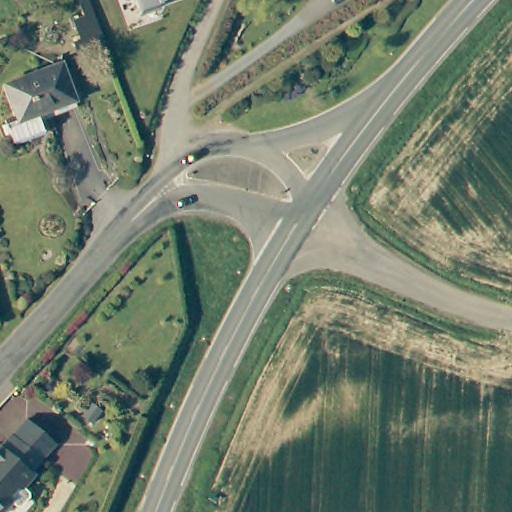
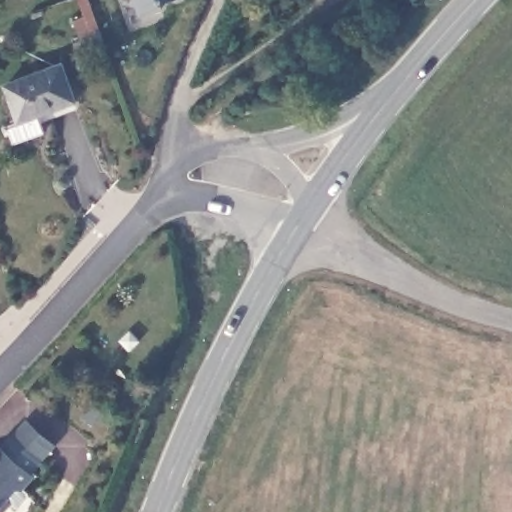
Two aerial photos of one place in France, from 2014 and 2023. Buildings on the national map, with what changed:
unchanged [(136,9),(132,0),(156,0),(156,1),(136,9)]
unchanged [(22,124),(7,85),(62,64),(77,100),(22,124)]
unchanged [(7,434),(22,419),(49,444),(35,460),(24,473),(27,476),(15,491),(11,488),(0,499),(4,503),(0,507),(0,443),(7,434)]

